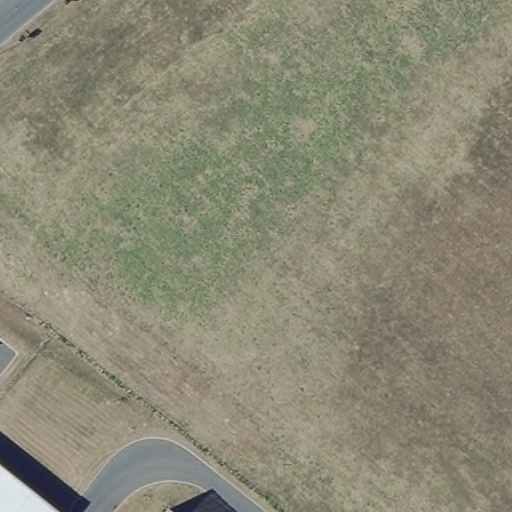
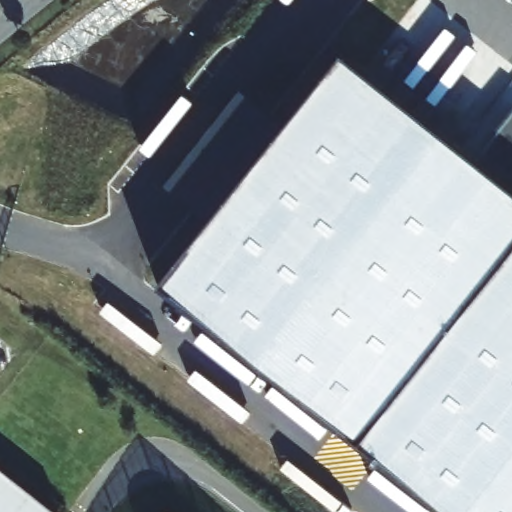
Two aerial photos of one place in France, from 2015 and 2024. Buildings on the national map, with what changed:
new [(162,287),(344,55),(512,190),(512,512),(443,512),(162,287)]
new [(473,159),(512,113),(512,190),(473,159)]
unchanged [(0,468),(55,512),(0,512),(0,468)]

